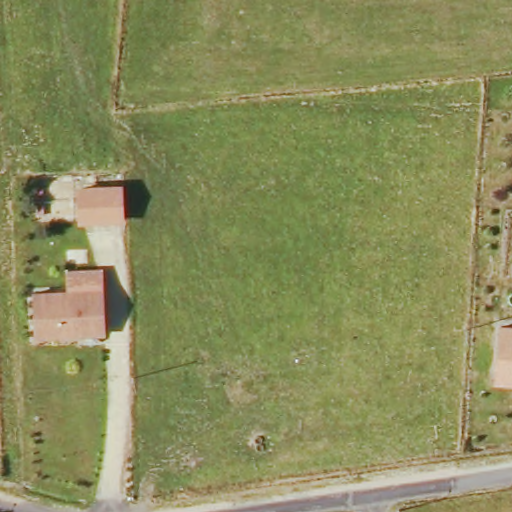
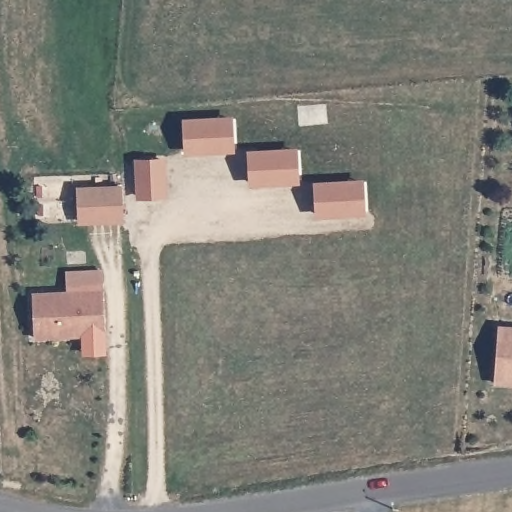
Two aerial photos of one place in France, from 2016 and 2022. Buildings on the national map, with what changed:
new [(183,118),(233,115),(235,151),(184,154),(183,118)]
new [(298,147),(301,184),(249,186),(247,150),(298,147)]
new [(166,158),(168,199),(136,199),(135,159),(166,158)]
new [(316,217),(314,181),(364,179),(366,215),(316,217)]
new [(76,186),(122,184),(124,222),(78,224),(76,186)]
demolished [(89,221),(87,192),(116,191),(117,220),(89,221)]
unchanged [(33,342),(31,295),(66,292),(66,276),(93,275),(94,292),(102,292),(105,339),(33,342)]
unchanged [(497,372),(500,326),(512,327),(512,383),(497,382),(497,372)]

